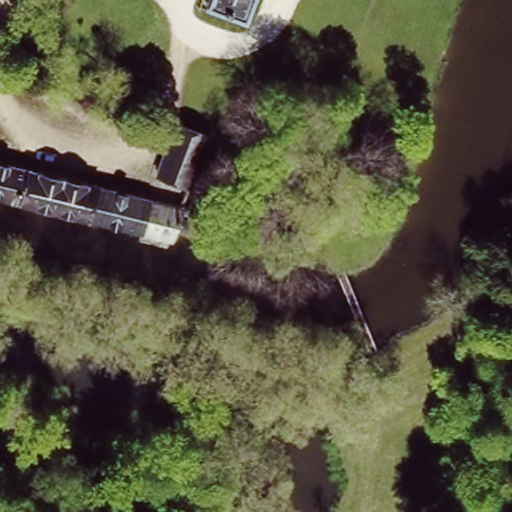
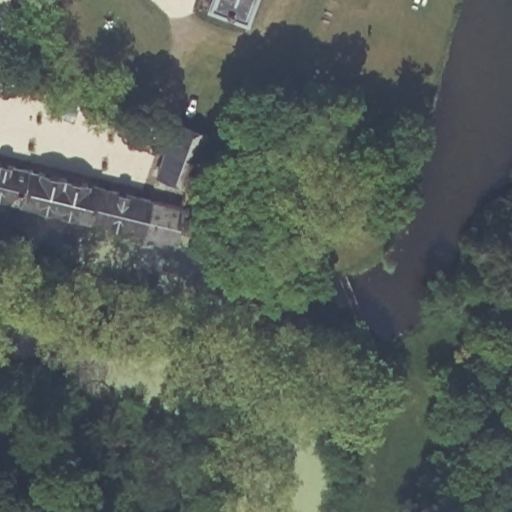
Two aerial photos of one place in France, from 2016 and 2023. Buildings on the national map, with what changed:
unchanged [(207,0),(252,0),(245,17),(206,2),(207,0)]
unchanged [(158,174),(177,124),(208,135),(190,185),(158,174)]
unchanged [(187,202),(177,235),(0,192),(0,159),(187,202)]
unchanged [(198,198),(196,205),(187,202),(190,196),(198,198)]

